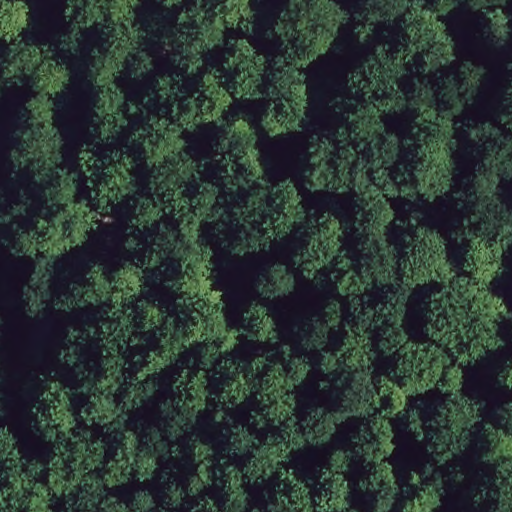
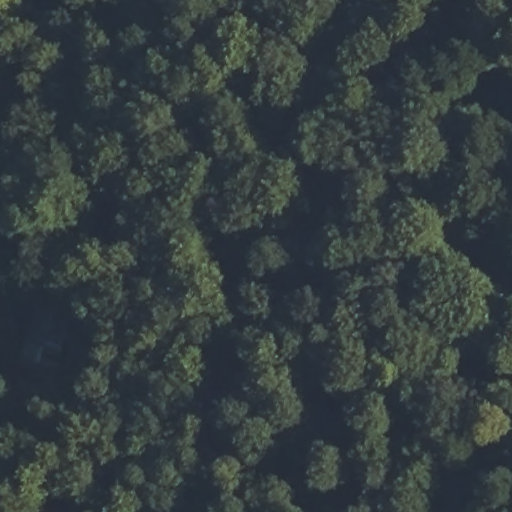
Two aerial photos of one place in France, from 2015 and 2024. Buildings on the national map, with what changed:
unchanged [(28,267),(57,278),(40,321),(11,310),(28,267)]

